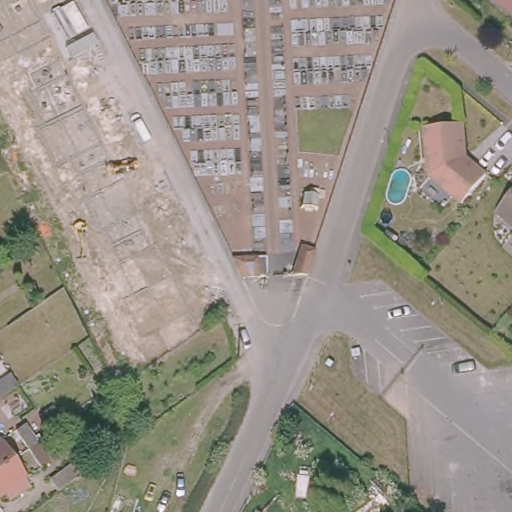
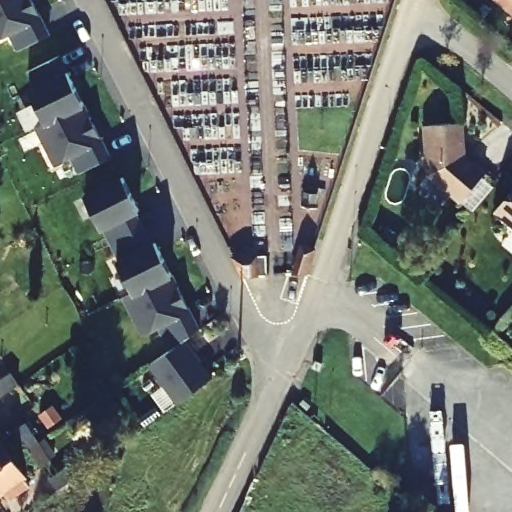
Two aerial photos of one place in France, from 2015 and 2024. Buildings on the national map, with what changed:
new [(19,50),(11,34),(0,40),(0,0),(33,0),(51,34),(19,50)]
unchanged [(502,0),(512,0),(512,8),(502,0)]
new [(61,56),(85,104),(46,122),(31,91),(37,87),(30,71),(61,56)]
new [(46,122),(85,104),(112,157),(80,173),(72,156),(57,164),(37,126),(46,122)]
unchanged [(460,145),(458,145),(457,154),(481,173),(457,201),(425,174),(422,124),(458,121),(460,145)]
new [(124,177),(141,210),(136,212),(144,228),(113,244),(105,228),(102,229),(86,196),(124,177)]
unchanged [(497,211),(512,193),(512,224),(497,211)]
new [(144,228),(152,245),(157,242),(172,274),(135,293),(119,261),(121,260),(113,244),(144,228)]
unchanged [(307,270),(292,270),(300,241),(316,245),(307,270)]
unchanged [(229,251),(257,251),(268,251),(269,271),(259,271),(238,271),(229,251)]
new [(135,293),(172,274),(201,330),(171,350),(160,328),(145,336),(126,298),(135,293)]
new [(180,408),(152,369),(188,345),(215,383),(180,408)]
unchanged [(19,384),(0,396),(0,381),(12,373),(19,384)]
unchanged [(42,468),(29,449),(16,431),(27,423),(40,441),(53,460),(42,468)]
unchanged [(0,466),(0,451),(7,461),(0,466)]
unchanged [(6,502),(0,495),(0,466),(7,461),(26,487),(6,502)]
unchanged [(72,464),(80,474),(59,490),(51,480),(72,464)]

